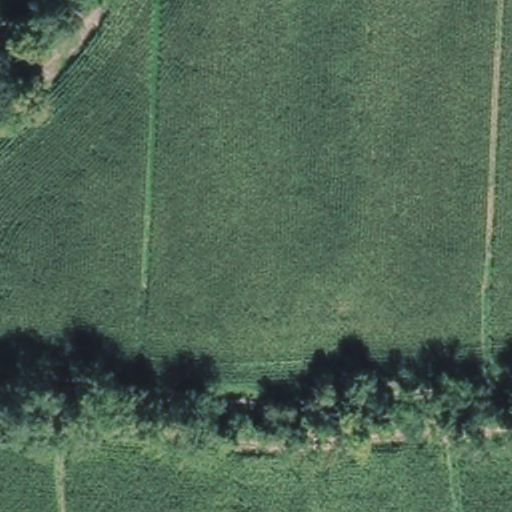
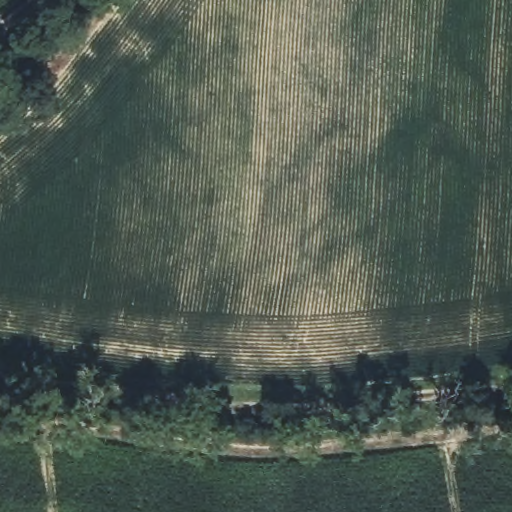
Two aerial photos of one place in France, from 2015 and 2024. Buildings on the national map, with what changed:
[]

